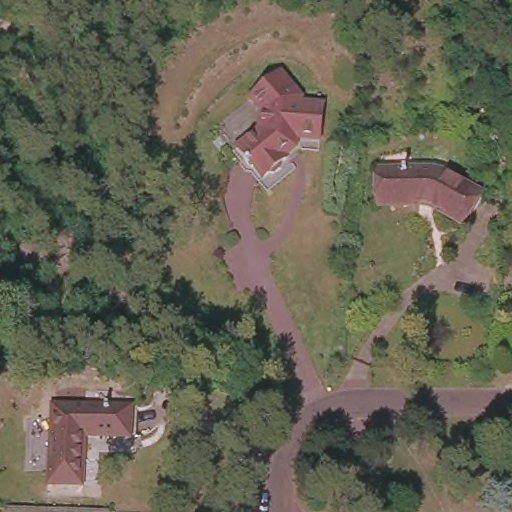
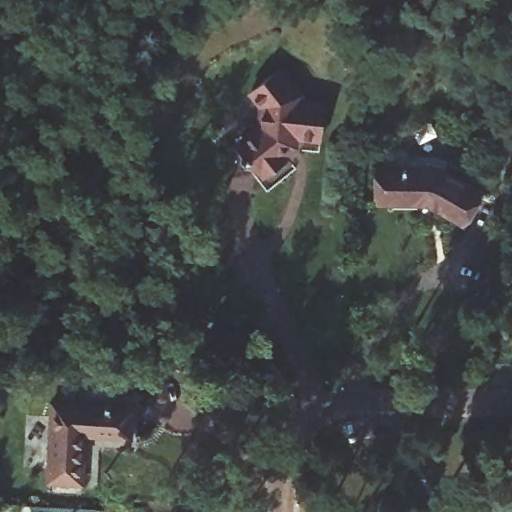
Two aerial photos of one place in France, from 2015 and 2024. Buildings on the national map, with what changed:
unchanged [(289,154),(290,155),(285,159),(284,165),(277,170),(272,170),(266,174),(256,161),(253,163),(247,156),(250,154),(240,141),(264,123),(265,105),(255,91),(285,68),(305,95),(305,99),(329,102),(324,138),(300,135),(300,144),(289,154)]
unchanged [(391,192),(379,192),(380,159),(392,159),(418,159),(424,157),(447,161),(482,184),(464,214),(435,193),(391,192)]
unchanged [(84,429),(82,478),(48,477),(52,397),(131,400),(130,429),(84,429)]

